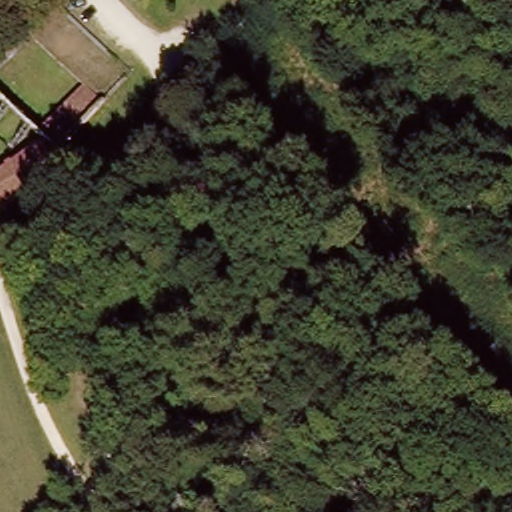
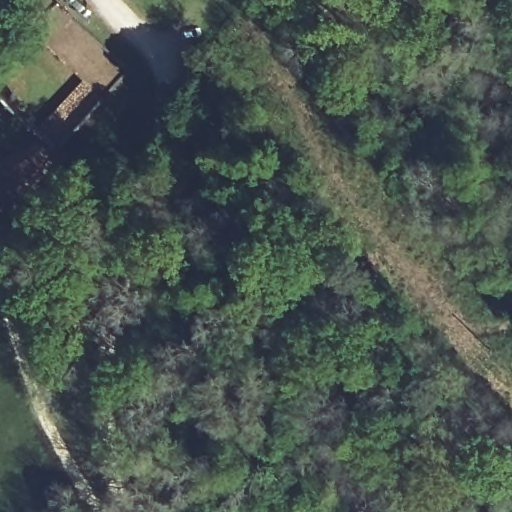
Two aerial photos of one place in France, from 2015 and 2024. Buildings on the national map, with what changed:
unchanged [(35,130),(84,79),(106,99),(58,149),(61,154),(0,207),(0,169),(40,137),(35,130)]

